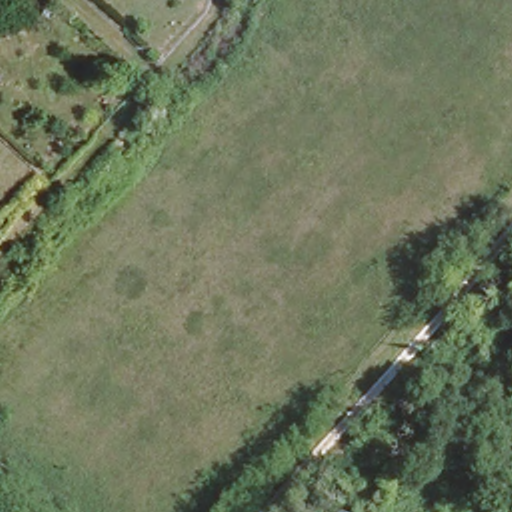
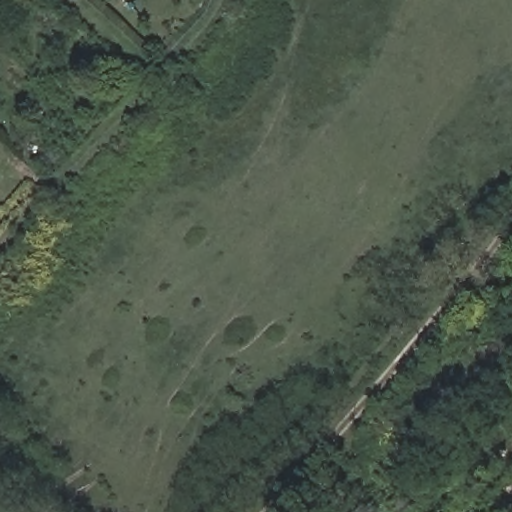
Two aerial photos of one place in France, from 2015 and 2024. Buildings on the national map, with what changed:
[]

